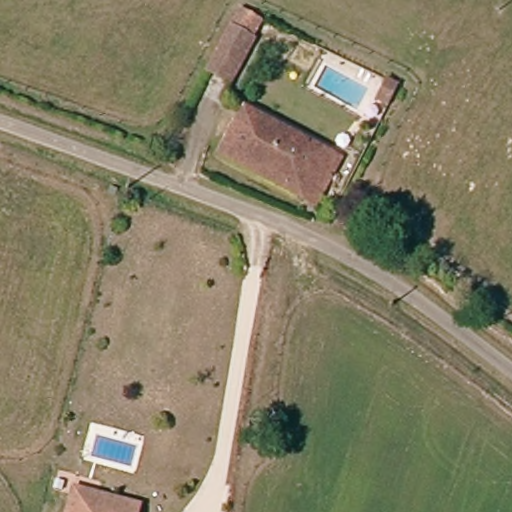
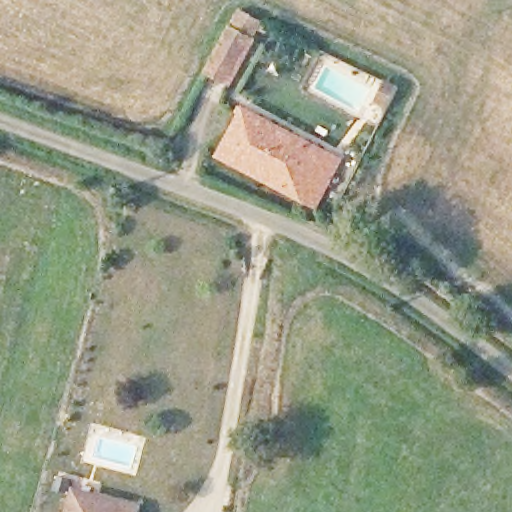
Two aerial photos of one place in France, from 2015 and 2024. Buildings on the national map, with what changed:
unchanged [(230,85),(211,74),(247,13),(266,24),(230,85)]
unchanged [(395,115),(385,109),(397,86),(408,93),(395,115)]
unchanged [(314,210),(300,202),(219,156),(246,108),(327,156),(340,164),(314,210)]
unchanged [(77,492),(141,502),(139,512),(73,512),(77,492)]

